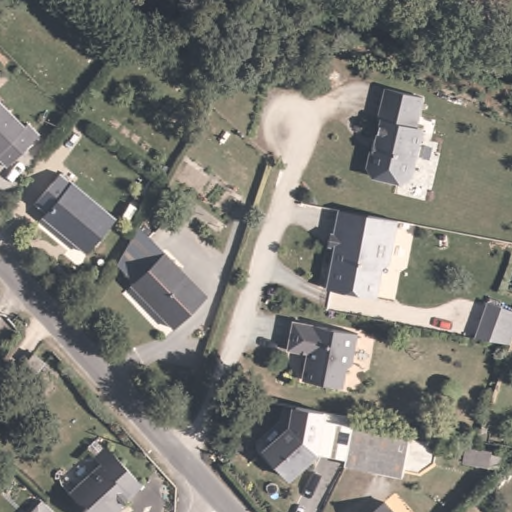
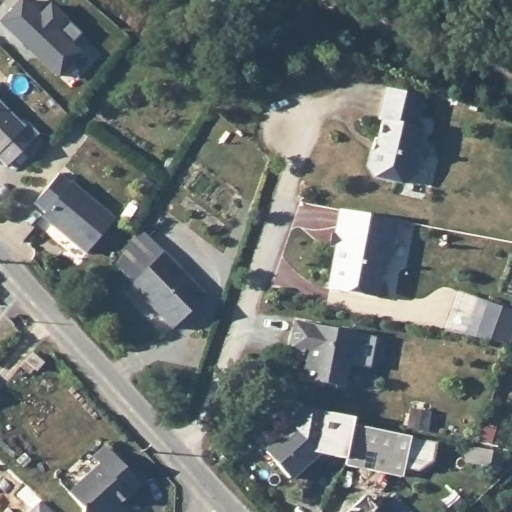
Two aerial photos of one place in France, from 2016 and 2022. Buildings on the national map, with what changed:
new [(40,12),(51,2),(69,19),(67,21),(79,33),(69,42),(81,54),(57,77),(0,25),(0,19),(19,0),(27,0),(40,12)]
unchanged [(427,95),(422,125),(427,126),(418,174),(407,181),(382,176),(375,165),(377,150),(381,151),(387,120),(383,120),(391,87),(427,95)]
unchanged [(29,122),(38,132),(3,164),(0,160),(0,100),(23,124),(29,122)]
unchanged [(84,252),(39,214),(42,209),(32,200),(57,171),(113,218),(84,252)]
unchanged [(390,263),(381,275),(377,300),(329,292),(334,249),(338,247),(339,240),(333,239),(334,229),(337,210),(368,215),(397,220),(390,263)]
unchanged [(202,295),(168,325),(124,279),(126,276),(112,262),(135,222),(202,295)]
unchanged [(490,306),(512,312),(512,344),(477,338),(490,306)]
unchanged [(375,335),(372,367),(352,363),(347,363),(344,385),(302,378),(305,352),(287,351),(291,322),(357,332),(375,335)]
unchanged [(292,478),(265,449),(289,427),(291,407),(326,411),(323,421),(319,450),(292,478)]
unchanged [(431,461),(416,466),(403,464),(402,475),(362,467),(344,462),(346,454),(319,450),(323,421),(433,437),(431,461)]
new [(470,447),(492,451),(491,454),(503,456),(501,469),(467,463),(470,447)]
unchanged [(114,512),(85,512),(85,509),(72,492),(97,470),(91,460),(104,449),(139,487),(114,512)]
unchanged [(394,512),(364,512),(381,497),(394,512)]
unchanged [(37,512),(47,501),(59,512),(37,512)]

